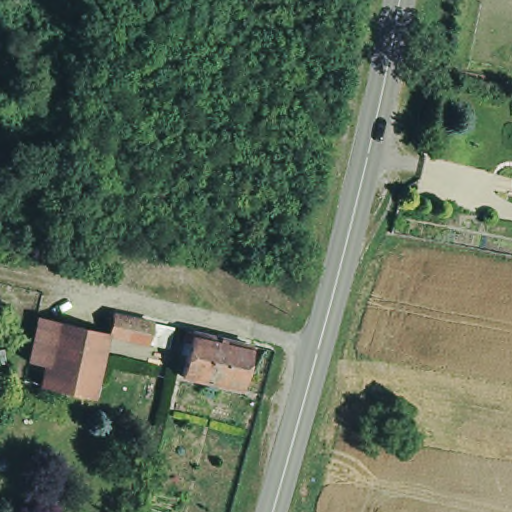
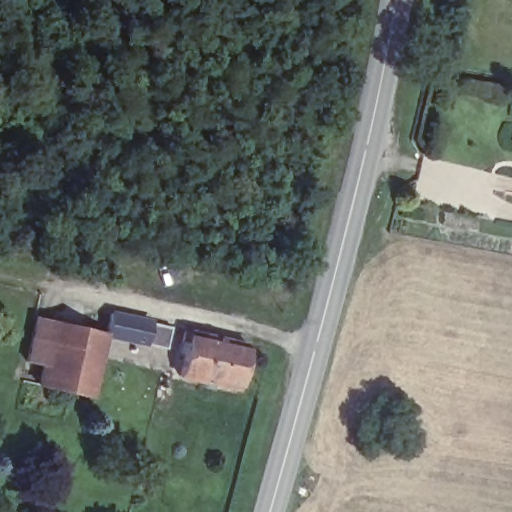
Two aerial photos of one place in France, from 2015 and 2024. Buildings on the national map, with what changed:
unchanged [(112,322),(115,312),(153,319),(151,330),(112,322)]
unchanged [(43,383),(48,361),(28,356),(38,314),(110,331),(95,395),(43,383)]
unchanged [(256,339),(245,386),(187,371),(193,346),(182,342),(189,323),(256,339)]

